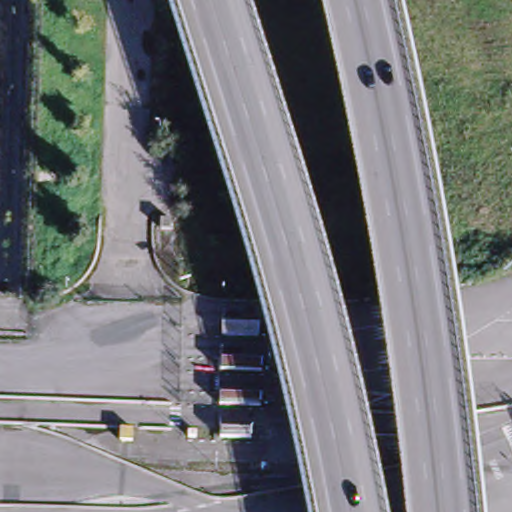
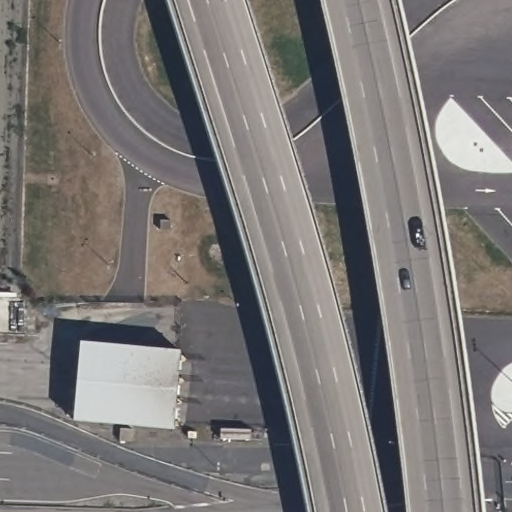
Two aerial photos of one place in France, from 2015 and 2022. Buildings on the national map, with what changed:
new [(173,430),(75,420),(81,342),(181,349),(173,430)]

